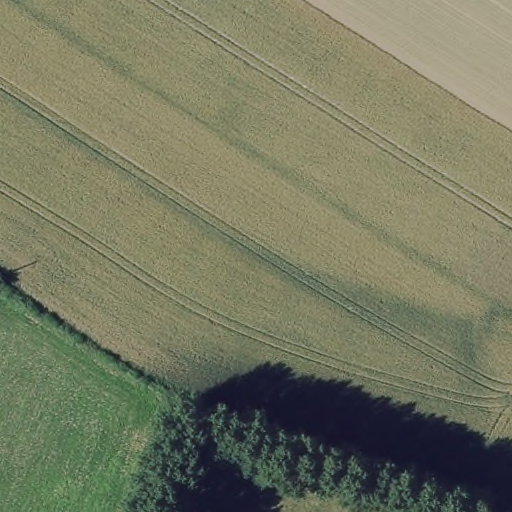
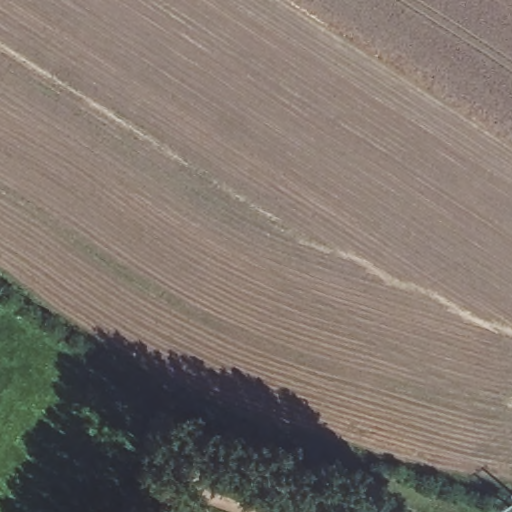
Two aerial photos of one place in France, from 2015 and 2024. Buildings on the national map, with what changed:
[]

